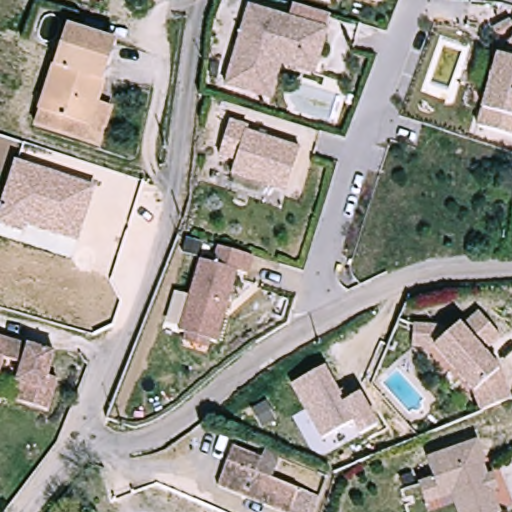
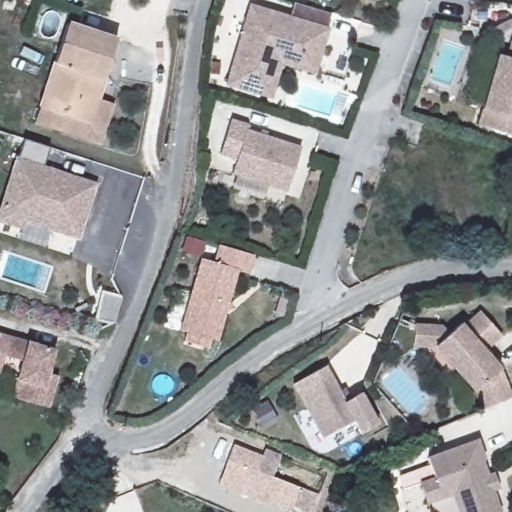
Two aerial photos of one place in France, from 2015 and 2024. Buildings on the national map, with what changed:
unchanged [(382,1),(378,0),(382,0),(382,1)]
unchanged [(231,86),(253,7),(332,29),(323,59),(280,47),(267,96),(231,86)]
unchanged [(94,127),(43,112),(70,29),(120,43),(120,49),(119,53),(102,103),(94,127)]
unchanged [(323,59),(320,74),(286,64),(276,99),(267,96),(280,47),(323,59)]
unchanged [(488,101),(503,55),(512,55),(512,54),(512,133),(482,123),(488,101)]
unchanged [(117,107),(105,146),(38,126),(43,112),(94,127),(102,103),(117,107)]
unchanged [(253,127),(252,132),(305,149),(292,192),(237,175),(242,161),(225,155),(235,122),(253,127)]
unchanged [(78,239),(25,224),(22,232),(0,224),(0,205),(16,155),(97,183),(78,239)]
unchanged [(256,255),(250,274),(240,271),(220,341),(214,339),(210,347),(186,341),(188,332),(180,331),(201,258),(213,262),(219,245),(256,255)]
unchanged [(482,406),(475,388),(433,343),(412,343),(412,323),(440,324),(447,331),(457,321),(460,324),(477,308),(500,331),(482,347),(499,365),(511,393),(482,406)]
unchanged [(0,376),(0,335),(50,349),(43,373),(50,375),(42,407),(17,399),(7,396),(12,379),(0,376)]
unchanged [(381,422),(365,432),(357,420),(354,422),(327,440),(292,390),(322,369),(345,403),(361,393),(363,396),(381,422)]
unchanged [(443,512),(436,512),(433,506),(425,487),(440,481),(433,462),(482,442),(490,462),(487,463),(507,512),(466,512),(463,504),(443,512)]
unchanged [(280,512),(220,488),(234,448),(264,460),(267,454),(280,459),(272,480),(321,498),(316,512),(280,512)]

